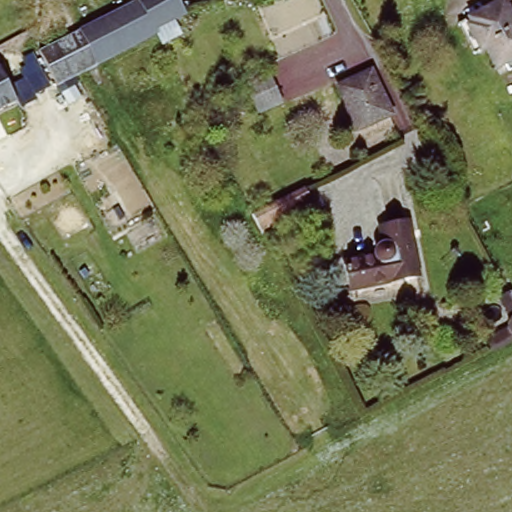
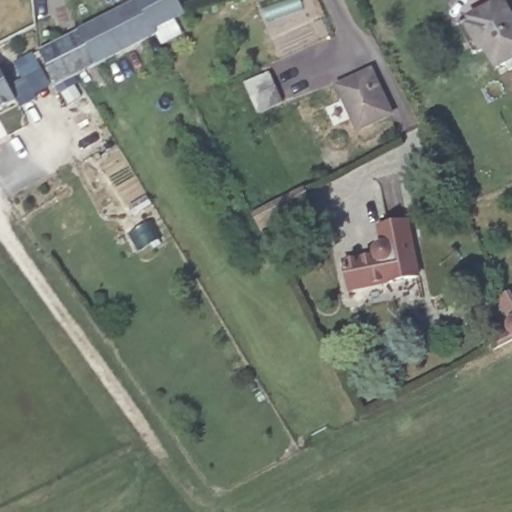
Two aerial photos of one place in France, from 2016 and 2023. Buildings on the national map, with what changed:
unchanged [(162,30),(77,70),(56,80),(41,44),(120,5),(117,0),(147,0),(161,26),(162,30)]
unchanged [(161,26),(147,0),(185,0),(191,11),(161,26)]
unchanged [(497,55),(485,61),(466,28),(495,13),(512,4),(512,64),(503,69),(497,55)]
unchanged [(36,31),(36,26),(45,25),(46,31),(36,31)]
unchanged [(17,96),(0,104),(0,61),(17,96)]
unchanged [(270,65),(285,94),(258,109),(243,79),(270,65)]
unchanged [(396,113),(363,131),(341,90),(375,72),(396,113)]
unchanged [(260,225),(252,209),(300,183),(308,198),(260,225)]
unchanged [(415,219),(423,273),(355,287),(350,259),(381,253),(380,248),(389,239),(393,239),(391,222),(415,219)]
unchanged [(487,340),(505,330),(507,311),(500,297),(511,291),(512,291),(512,341),(493,351),(487,340)]

